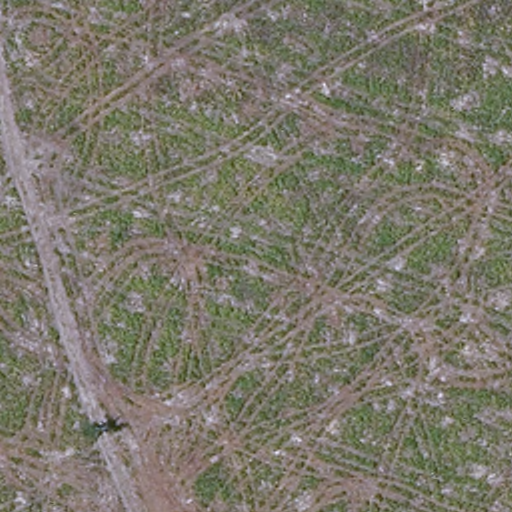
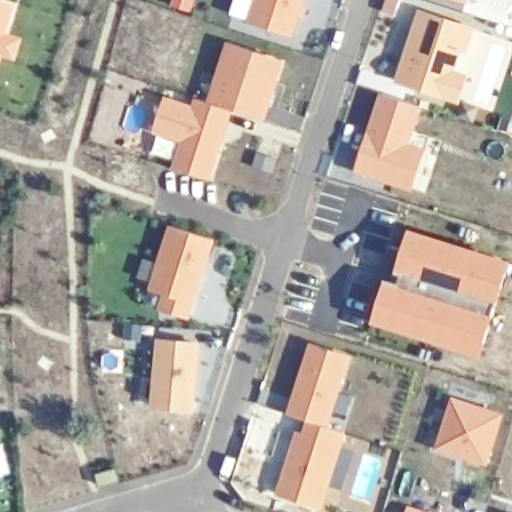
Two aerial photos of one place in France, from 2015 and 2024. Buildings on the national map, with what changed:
new [(307,7),(305,17),(300,15),(293,39),(247,26),(256,0),(306,0),(304,5),(307,7)]
new [(455,0),(467,0),(465,4),(455,0)]
new [(0,63),(0,1),(18,6),(0,63)]
new [(477,28),(469,51),(463,50),(458,69),(471,74),(462,105),(395,83),(420,10),(477,28)]
new [(286,61),(267,120),(235,111),(214,182),(173,169),(181,143),(155,134),(167,96),(193,105),(196,97),(207,101),(228,41),(286,61)]
new [(423,106),(412,144),(427,148),(415,192),(354,174),(379,94),(423,106)]
new [(217,240),(190,319),(159,309),(164,294),(149,289),(169,226),(217,240)]
new [(408,228),(509,260),(495,302),(401,274),(394,272),(408,228)]
new [(401,274),(495,302),(491,314),(398,282),(401,274)]
new [(385,278),(398,282),(491,314),(478,357),(370,323),(385,278)]
new [(202,344),(196,414),(152,410),(157,339),(202,344)]
new [(352,358),(329,427),(349,433),(325,511),(277,496),(298,432),(303,433),(307,420),(289,414),(311,343),(352,358)]
new [(506,414),(488,468),(434,452),(452,397),(506,414)]

